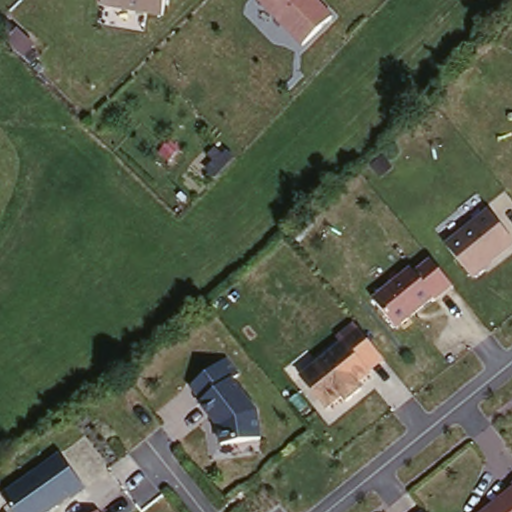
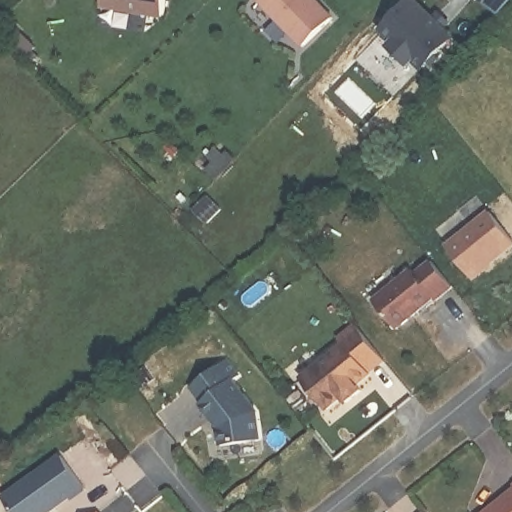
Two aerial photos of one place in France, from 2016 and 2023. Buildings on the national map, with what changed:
unchanged [(163,16),(103,6),(104,0),(166,0),(163,16)]
unchanged [(338,12),(304,44),(258,0),(259,0),(326,0),(338,12)]
new [(456,34),(426,69),(416,60),(411,64),(389,45),(393,40),(381,29),(408,0),(421,0),(456,34)]
unchanged [(512,238),(512,250),(479,276),(446,238),(483,208),(512,238)]
unchanged [(427,255),(454,284),(400,324),(375,296),(427,255)]
unchanged [(342,339),(337,334),(351,322),(385,356),(360,379),(364,384),(349,398),(343,394),(327,407),(296,376),(342,339)]
unchanged [(222,359),(261,410),(264,433),(216,440),(216,422),(186,388),(222,359)]
unchanged [(84,482),(41,512),(16,512),(3,490),(59,451),(84,482)]
unchanged [(507,485),(512,481),(512,512),(481,512),(510,490),(507,485)]
unchanged [(428,512),(419,512),(424,508),(428,512)]
unchanged [(101,512),(100,512),(101,511),(101,512)]

